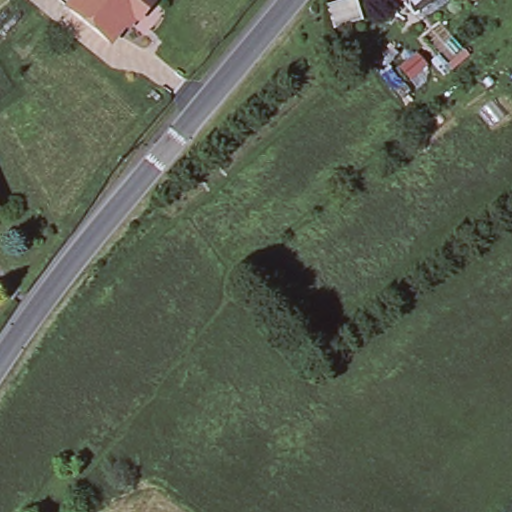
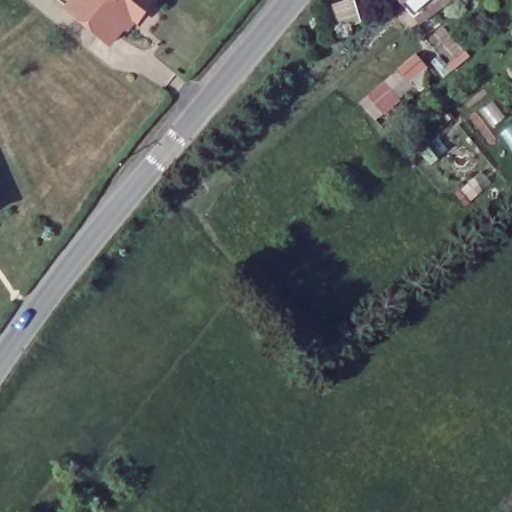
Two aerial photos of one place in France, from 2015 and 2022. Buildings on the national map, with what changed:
unchanged [(141,0),(149,8),(133,27),(128,22),(105,49),(63,13),(74,0),(141,0)]
unchanged [(396,0),(412,0),(403,8),(396,0)]

